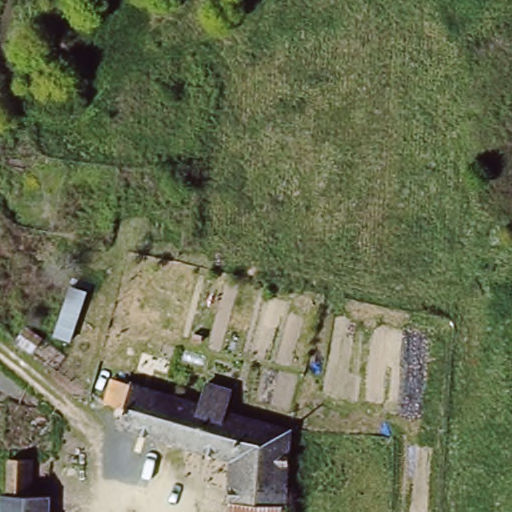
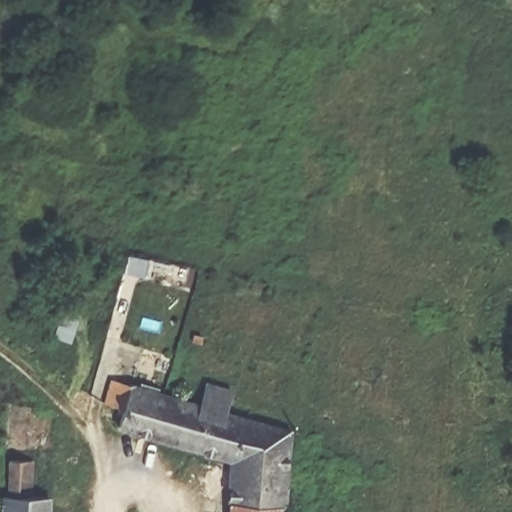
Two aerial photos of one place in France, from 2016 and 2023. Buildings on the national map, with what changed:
unchanged [(60,335),(78,281),(95,290),(79,343),(60,335)]
unchanged [(204,384),(236,392),(231,413),(296,430),(289,512),(225,512),(229,467),(116,428),(121,419),(104,411),(110,384),(198,403),(204,384)]
unchanged [(13,462),(28,463),(28,490),(45,491),(44,510),(59,511),(59,512),(0,512),(0,484),(11,484),(13,462)]

